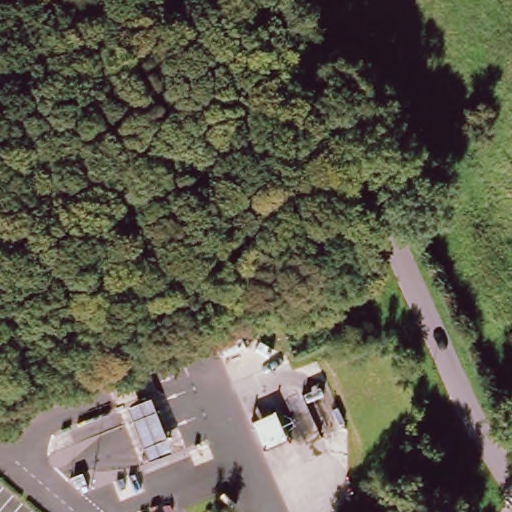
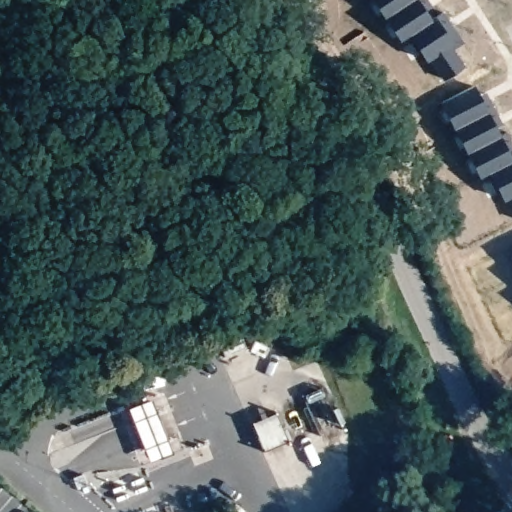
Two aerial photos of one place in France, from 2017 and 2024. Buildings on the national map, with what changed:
new [(442,80),(428,59),(425,60),(409,35),(400,41),(397,35),(391,39),(384,28),(390,25),(381,12),(375,15),(368,6),(375,2),(373,0),(419,0),(432,18),(435,15),(436,16),(442,12),(463,44),(452,50),(464,66),(442,80)]
new [(512,213),(505,200),(503,200),(490,174),(480,179),(475,171),(470,172),(465,163),(470,160),(463,147),(457,149),(452,140),(458,136),(450,124),(446,125),(440,113),(445,111),(440,103),(473,85),(512,155),(512,213)]
unchanged [(134,407),(154,398),(175,448),(150,462),(134,407)]
unchanged [(251,420),(281,410),(292,443),(265,457),(251,420)]
unchanged [(437,423),(441,430),(433,435),(430,428),(437,423)]

